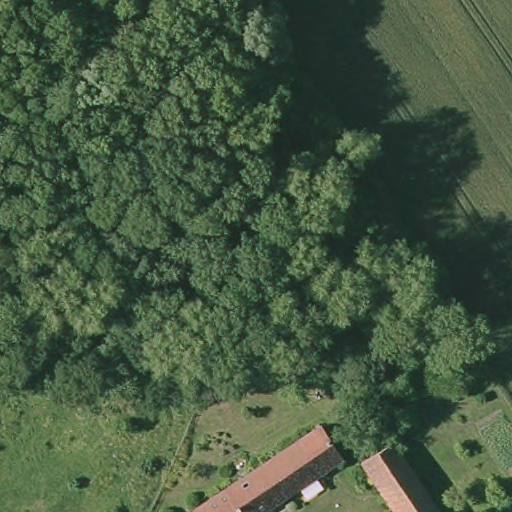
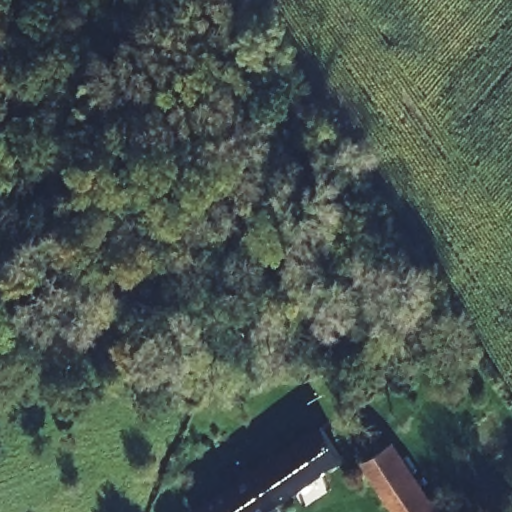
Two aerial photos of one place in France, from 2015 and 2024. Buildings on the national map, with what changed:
unchanged [(263,512),(200,512),(250,475),(320,424),(341,453),(263,512)]
unchanged [(366,448),(375,443),(384,436),(437,512),(395,512),(356,456),(366,448)]

